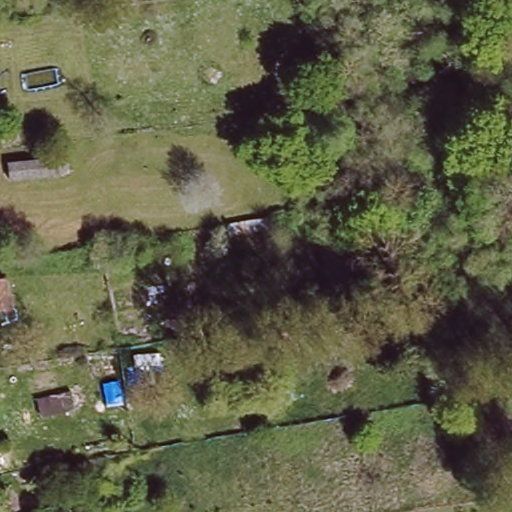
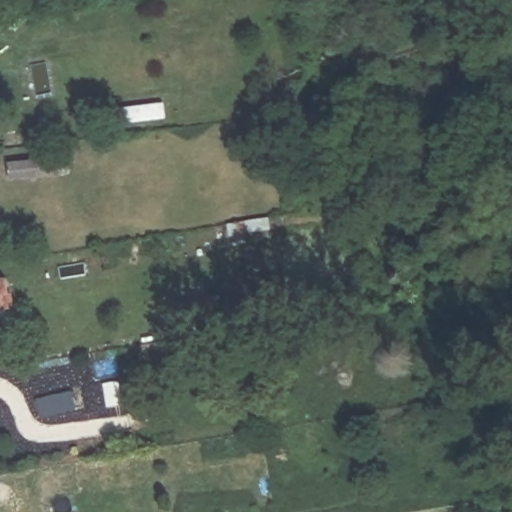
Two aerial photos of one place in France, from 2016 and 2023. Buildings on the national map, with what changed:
unchanged [(66,171),(14,178),(12,163),(65,157),(66,171)]

